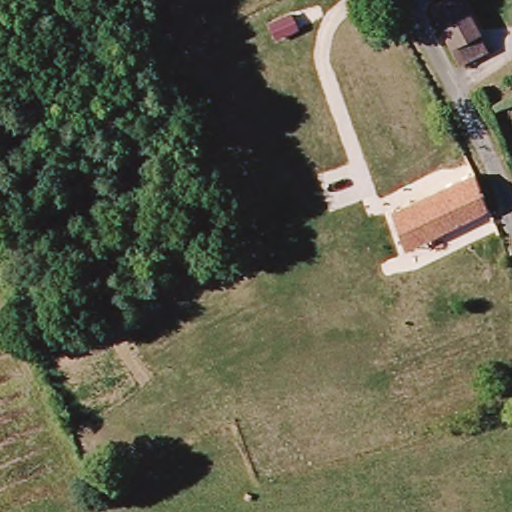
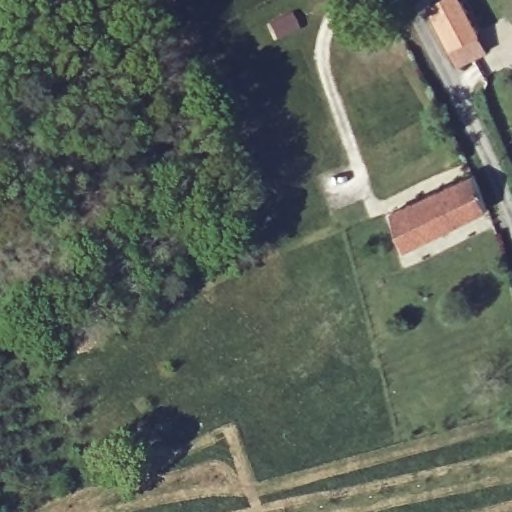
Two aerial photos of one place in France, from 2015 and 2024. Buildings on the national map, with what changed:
unchanged [(461,73),(452,55),(428,9),(437,0),(454,0),(478,40),(489,58),(461,74),(461,73)]
unchanged [(489,217),(424,243),(407,208),(474,182),(489,217)]

